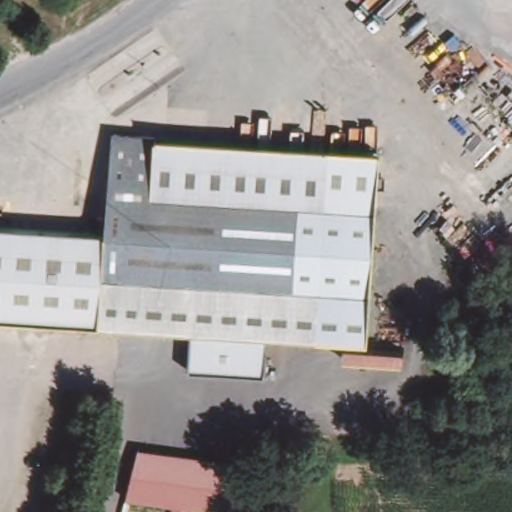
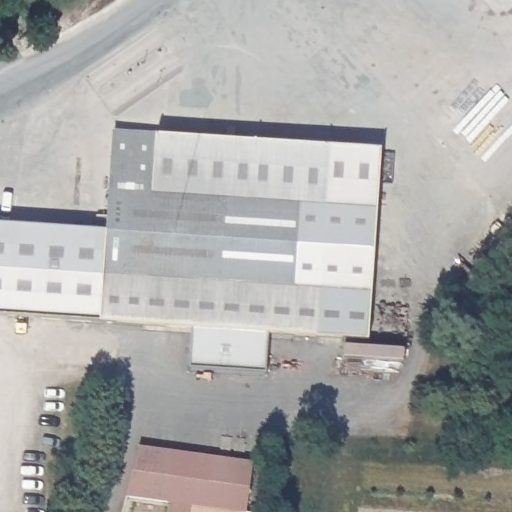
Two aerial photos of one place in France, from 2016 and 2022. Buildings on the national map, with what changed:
unchanged [(271,370),(193,364),(196,324),(105,319),(101,318),(0,311),(0,219),(106,227),(111,228),(118,128),(255,137),(266,138),(337,143),(334,191),(333,196),(323,333),(273,330),(271,370)]
unchanged [(240,512),(171,512),(172,503),(127,496),(140,446),(247,460),(240,512)]

